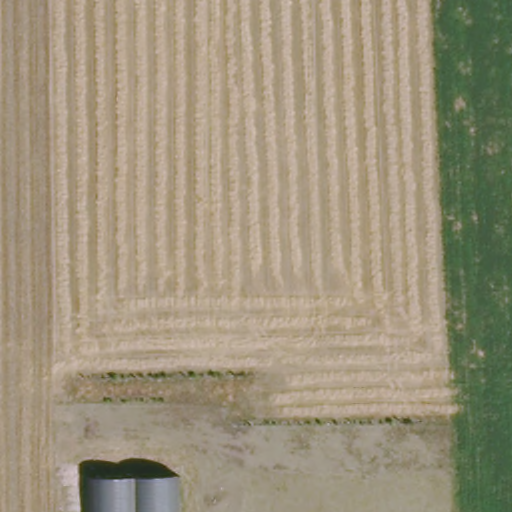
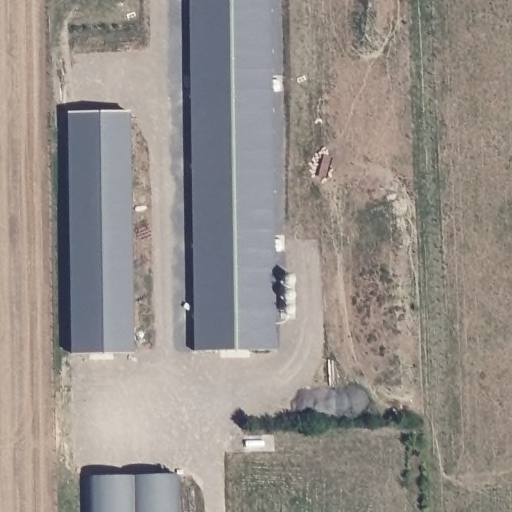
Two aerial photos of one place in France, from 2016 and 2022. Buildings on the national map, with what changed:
new [(276,350),(194,350),(190,0),(271,0),(276,350)]
new [(69,113),(130,112),(133,352),(71,353),(69,113)]
unchanged [(183,475),(183,512),(89,512),(88,477),(183,475)]

